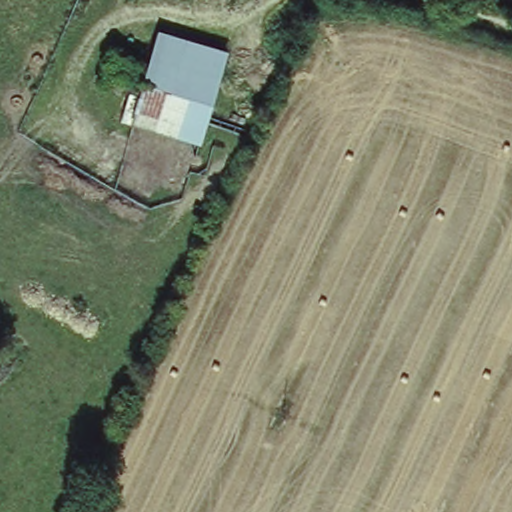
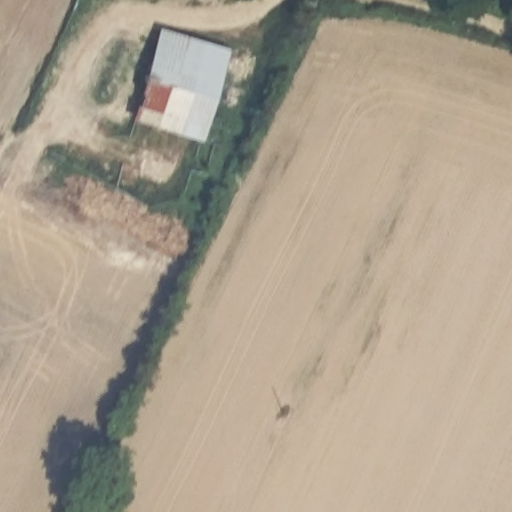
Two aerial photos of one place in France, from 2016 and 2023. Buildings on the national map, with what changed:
unchanged [(150,64),(159,32),(231,55),(201,145),(132,121),(141,90),(150,64)]
unchanged [(107,78),(120,44),(133,49),(128,56),(150,64),(141,90),(107,78)]

